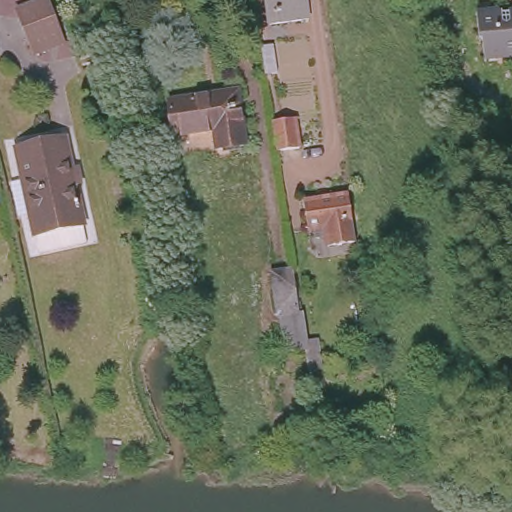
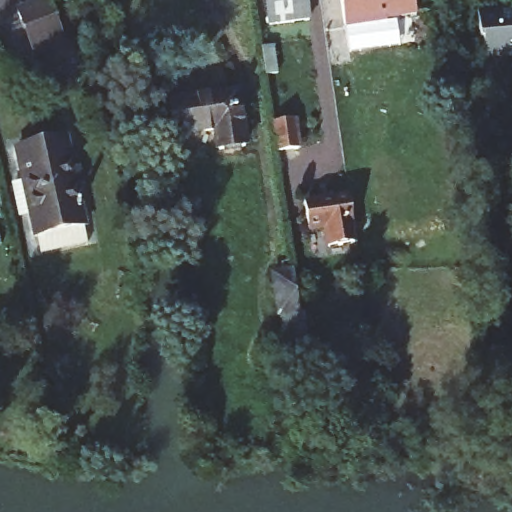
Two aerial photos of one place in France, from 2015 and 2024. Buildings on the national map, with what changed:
unchanged [(35,53),(19,10),(47,0),(48,0),(64,45),(35,53)]
unchanged [(267,25),(264,0),(303,0),(306,19),(267,25)]
new [(416,16),(345,29),(341,0),(414,0),(416,16)]
unchanged [(502,59),(482,60),(480,45),(477,42),(474,15),(497,14),(497,18),(512,17),(512,63),(507,63),(502,59)]
new [(400,46),(350,54),(345,29),(396,20),(400,46)]
unchanged [(167,105),(236,95),(243,149),(215,153),(213,131),(172,137),(167,105)]
unchanged [(295,117),(300,147),(279,150),(275,120),(295,117)]
unchanged [(12,187),(21,184),(14,150),(64,138),(67,154),(70,169),(74,168),(78,167),(80,174),(82,184),(78,184),(74,185),(80,211),(84,227),(82,228),(85,245),(40,255),(37,237),(32,238),(29,216),(19,218),(12,187)]
unchanged [(349,242),(323,246),(319,225),(300,228),(297,202),(342,195),(349,242)]
unchanged [(299,328),(280,331),(273,289),(292,287),(299,328)]
unchanged [(319,341),(324,371),(307,374),(303,343),(319,341)]

